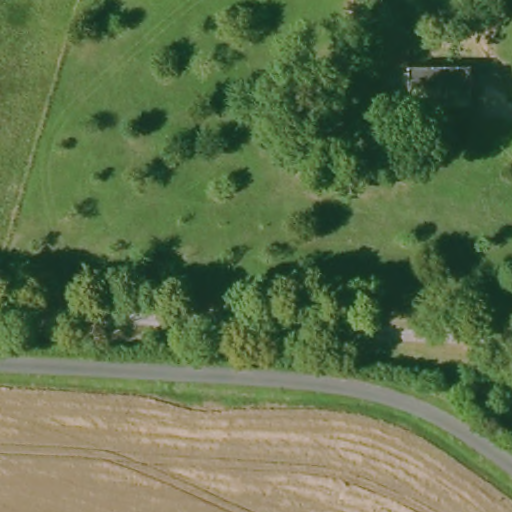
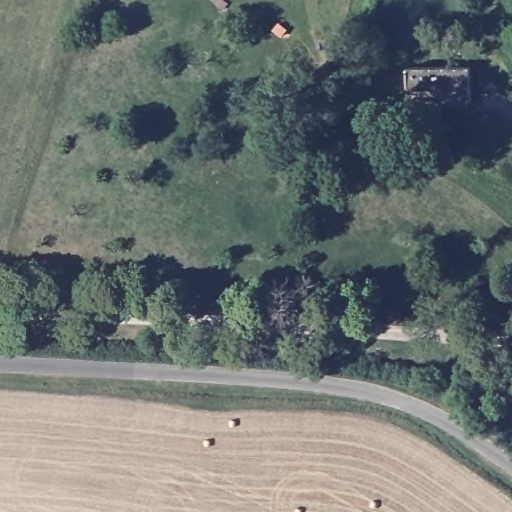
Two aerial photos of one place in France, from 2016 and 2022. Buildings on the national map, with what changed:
unchanged [(476,108),(409,110),(408,65),(473,63),(476,108)]

